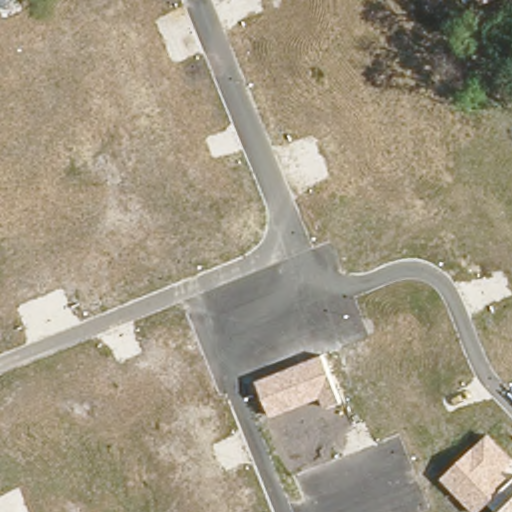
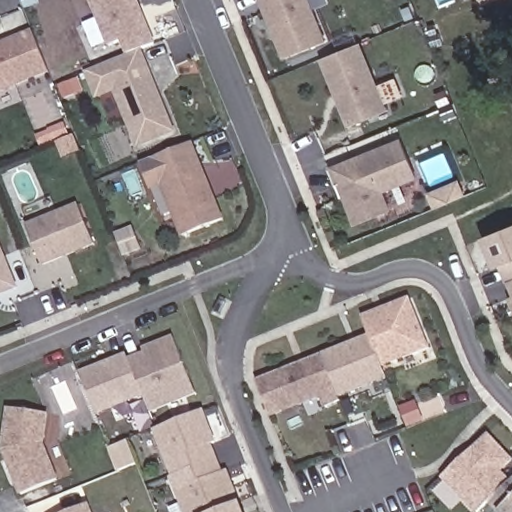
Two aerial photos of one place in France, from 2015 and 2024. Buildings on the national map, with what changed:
new [(153,46),(142,51),(175,133),(137,149),(113,91),(94,100),(84,71),(125,54),(120,40),(106,44),(88,0),(138,0),(153,46)]
new [(326,43),(282,61),(259,0),(308,0),(326,43)]
unchanged [(481,6),(478,0),(498,0),(481,6)]
new [(0,93),(0,42),(32,29),(48,72),(0,93)]
new [(387,108),(344,124),(318,58),(359,42),(387,108)]
new [(399,140),(413,176),(379,190),(385,204),(352,217),(338,182),(334,183),(328,168),(399,140)]
new [(210,191),(220,217),(180,233),(160,183),(150,187),(140,161),(190,141),(198,162),(210,191)]
new [(95,245),(42,266),(27,223),(80,203),(95,245)]
new [(512,226),(512,279),(509,280),(505,282),(499,266),(494,268),(482,237),(512,226)]
new [(0,296),(0,246),(17,289),(0,296)]
new [(509,280),(512,279),(512,288),(509,280)]
new [(508,296),(512,295),(512,305),(508,296)]
new [(378,365),(384,379),(338,396),(322,356),(320,351),(366,334),(360,314),(408,297),(427,345),(378,365)]
new [(173,336),(195,392),(148,410),(142,392),(128,358),(144,352),(142,348),(173,336)]
unchanged [(325,408),(321,397),(270,416),(256,380),(322,356),(338,396),(340,401),(325,408)]
new [(110,360),(112,364),(128,358),(142,392),(95,410),(80,371),(110,360)]
new [(174,472),(155,425),(203,405),(216,438),(211,440),(216,454),(174,472)]
new [(45,448),(58,478),(20,495),(1,447),(6,408),(49,413),(45,448)]
unchanged [(488,434),(512,459),(512,482),(488,504),(479,512),(473,512),(440,477),(488,434)]
new [(125,443),(131,462),(117,467),(111,449),(125,443)]
new [(222,468),(227,466),(240,498),(206,512),(186,512),(171,473),(174,472),(216,454),(222,468)]
unchanged [(512,482),(512,512),(496,512),(488,504),(512,482)]
new [(205,512),(240,498),(245,512),(205,512)]
new [(64,512),(87,503),(91,512),(64,512)]

